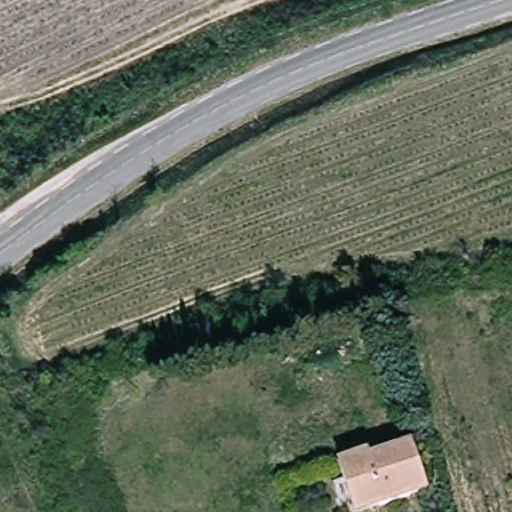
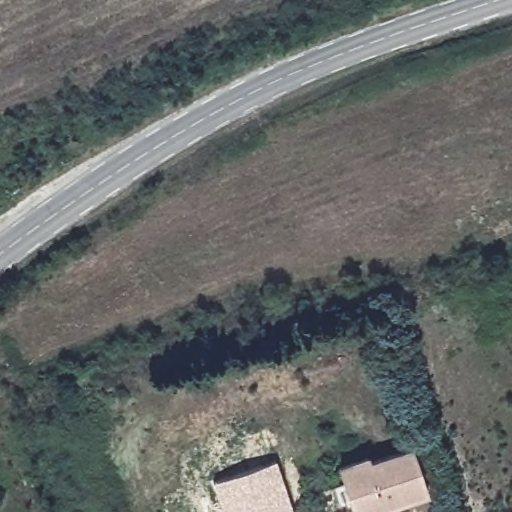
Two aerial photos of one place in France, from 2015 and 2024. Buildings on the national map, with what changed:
unchanged [(350,500),(359,496),(350,473),(417,449),(435,490),(375,511),(373,512),(353,512),(350,500)]
new [(212,482),(276,460),(294,512),(222,512),(212,482)]

